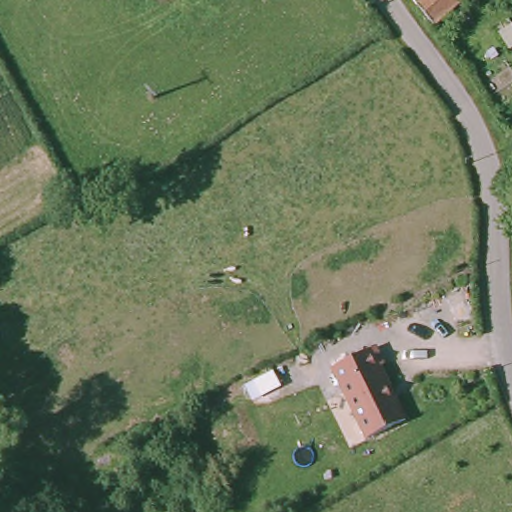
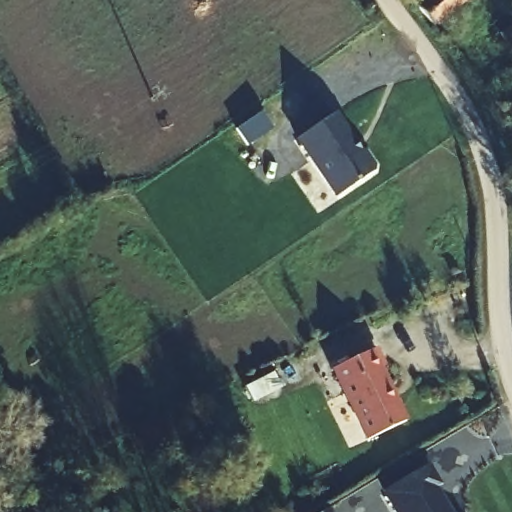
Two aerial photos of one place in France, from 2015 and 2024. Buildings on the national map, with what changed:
unchanged [(433,0),(470,0),(459,9),(439,26),(424,8),(433,0)]
new [(271,128),(246,144),(232,124),(258,107),(271,128)]
new [(334,113),(359,150),(364,151),(374,165),(373,171),(336,196),(296,138),(334,113)]
unchanged [(372,352),(382,371),(378,373),(404,424),(369,444),(331,371),(372,352)]
new [(436,483),(432,486),(447,512),(395,512),(381,490),(424,464),(436,483)]
new [(327,512),(322,512),(326,510),(327,512)]

